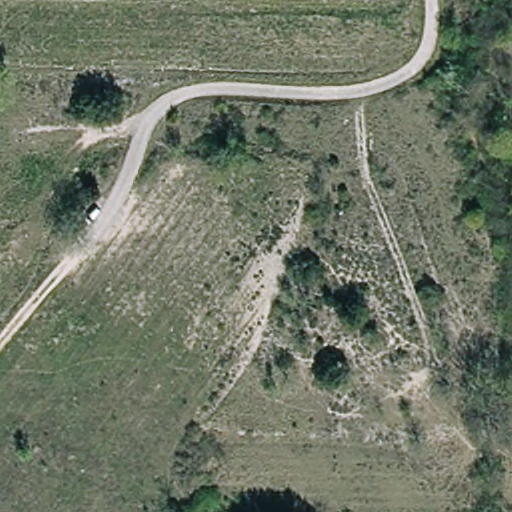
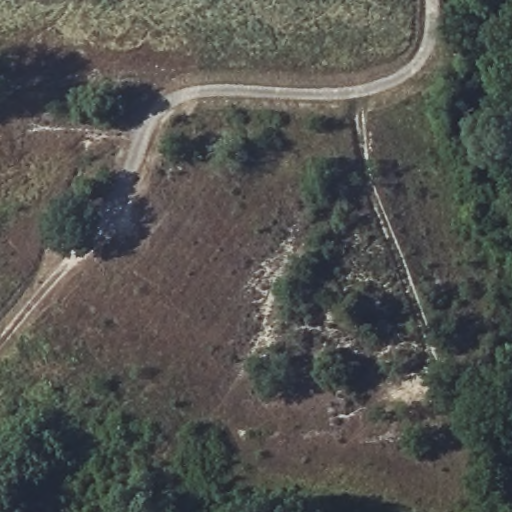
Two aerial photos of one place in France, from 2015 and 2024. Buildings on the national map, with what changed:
[]

